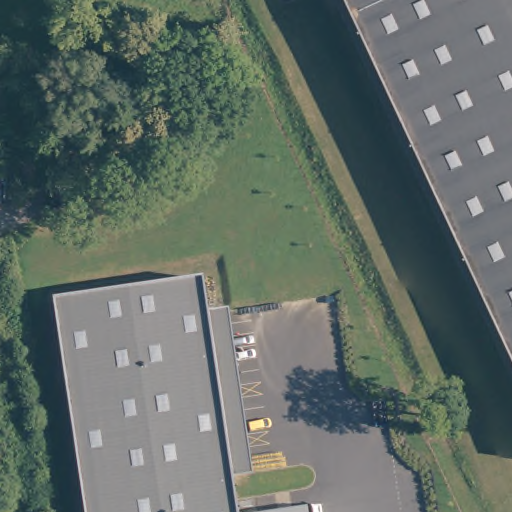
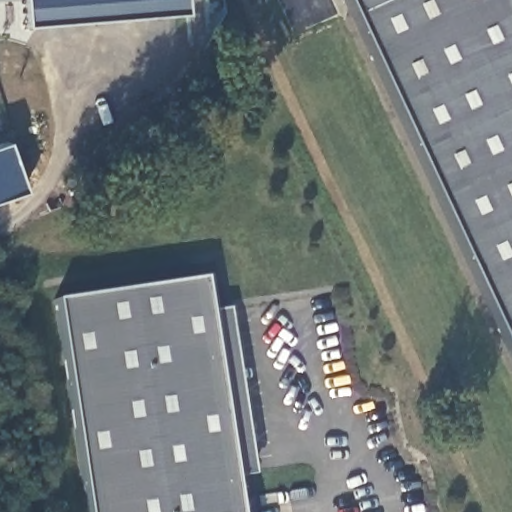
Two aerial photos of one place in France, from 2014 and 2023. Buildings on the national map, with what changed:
new [(27,27),(24,0),(188,0),(189,13),(27,27)]
unchanged [(512,0),(512,361),(343,0),(512,0)]
unchanged [(55,302),(203,280),(209,315),(229,312),(254,476),(233,478),(238,512),(87,512),(55,302)]

